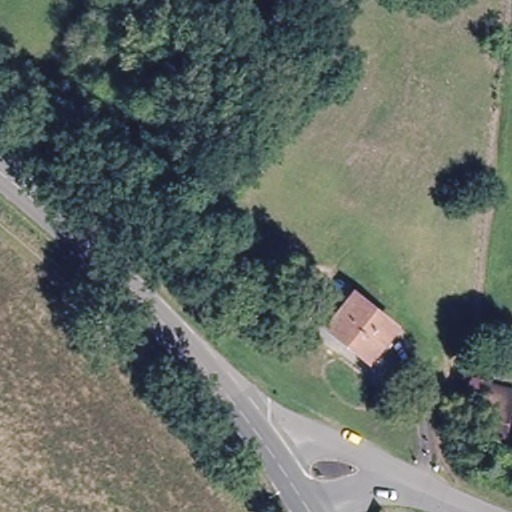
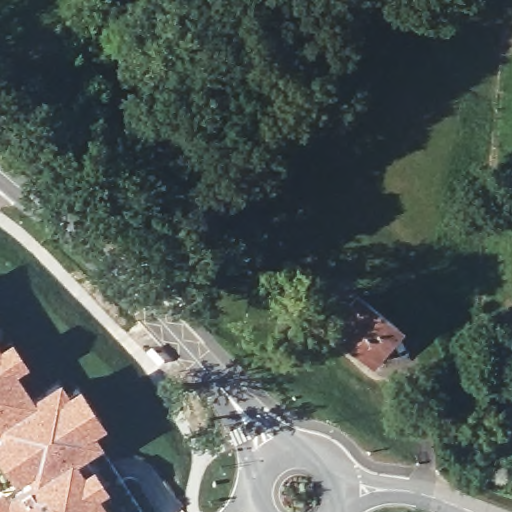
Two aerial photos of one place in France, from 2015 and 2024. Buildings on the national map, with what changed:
unchanged [(400,328),(372,362),(330,329),(358,294),(400,328)]
new [(9,498),(38,479),(30,467),(20,474),(0,444),(0,440),(9,433),(1,421),(0,422),(0,348),(11,341),(24,360),(13,367),(34,399),(61,382),(69,394),(79,387),(101,421),(91,428),(99,440),(72,458),(84,476),(95,469),(105,485),(95,491),(108,512),(0,512),(0,490),(2,488),(9,498)]
unchanged [(478,433),(486,397),(488,382),(512,386),(508,402),(502,438),(478,433)]

